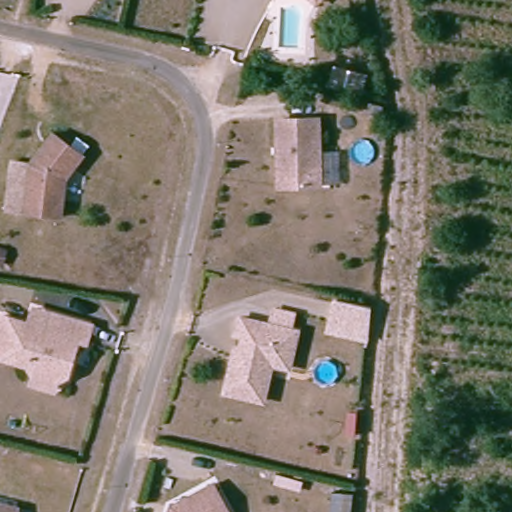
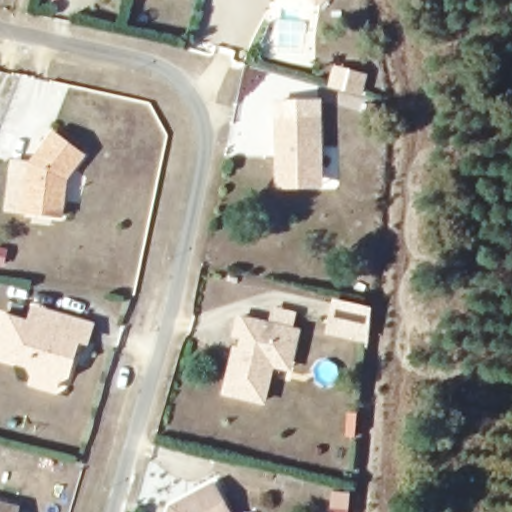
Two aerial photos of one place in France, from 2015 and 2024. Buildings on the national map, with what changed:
unchanged [(321,120),(322,174),(309,187),(280,187),(280,120),(321,120)]
unchanged [(56,131),(86,155),(70,175),(65,216),(25,211),(7,209),(15,160),(33,162),(56,131)]
unchanged [(325,328),(327,318),(332,296),(367,305),(364,327),(363,337),(325,328)]
unchanged [(257,398),(219,390),(228,352),(232,353),(237,333),(229,331),(233,314),(264,321),(267,305),(292,311),(288,327),(292,328),(283,365),(266,361),(257,398)]
unchanged [(36,378),(39,368),(35,359),(0,349),(0,336),(8,310),(59,325),(64,310),(98,320),(93,336),(85,333),(74,370),(64,375),(61,385),(36,378)]
unchanged [(168,504),(211,481),(228,512),(166,512),(168,504)]
unchanged [(340,488),(338,510),(326,509),(328,487),(340,488)]
unchanged [(25,507),(24,512),(0,512),(0,500),(25,507)]

